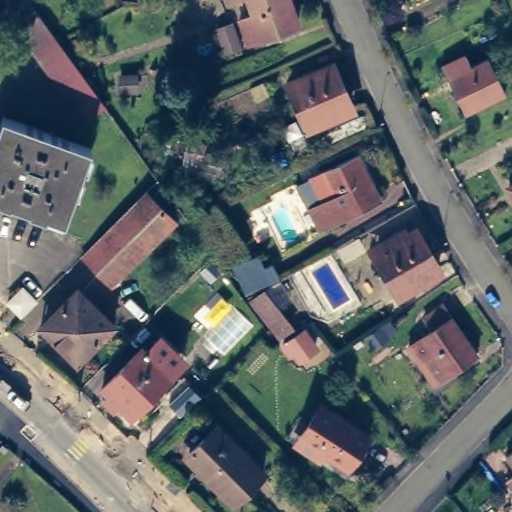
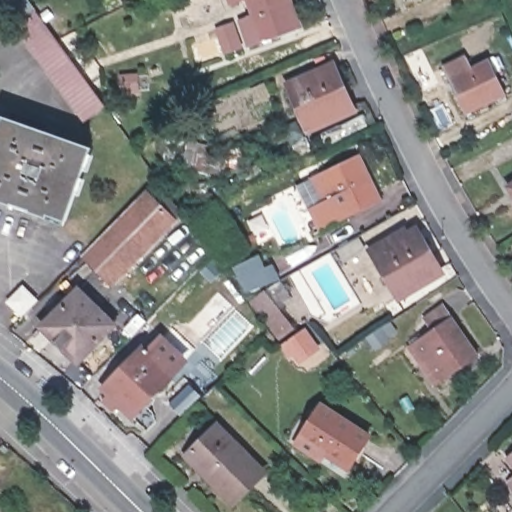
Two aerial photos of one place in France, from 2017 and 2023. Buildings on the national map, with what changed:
unchanged [(0,0),(16,0),(13,6),(0,0)]
unchanged [(309,18),(308,20),(261,36),(251,13),(265,7),(263,0),(304,0),(307,9),(309,18)]
unchanged [(78,109),(13,16),(33,1),(53,30),(99,94),(78,109)]
unchanged [(244,16),(252,39),(246,43),(239,44),(230,22),(236,19),(244,16)]
unchanged [(438,62),(458,53),(463,64),(485,55),(502,90),(462,110),(438,62)]
unchanged [(328,68),(346,110),(304,128),(296,104),(296,109),(288,86),(294,82),(294,83),(294,84),(328,68)]
unchanged [(512,93),(512,99),(509,94),(512,93)]
unchanged [(88,141),(65,217),(0,195),(0,112),(88,141)]
unchanged [(318,231),(306,201),(319,197),(307,175),(318,170),(359,148),(379,200),(324,228),(318,231)]
unchanged [(512,181),(512,185),(510,182),(512,181)]
unchanged [(142,191),(149,184),(172,204),(179,215),(173,220),(110,284),(80,255),(119,213),(142,191)]
unchanged [(417,220),(448,268),(399,299),(369,246),(417,220)]
unchanged [(26,309),(14,297),(28,283),(40,294),(26,309)]
unchanged [(76,290),(83,297),(89,294),(96,301),(93,307),(111,328),(76,362),(40,327),(76,290)]
unchanged [(444,301),(479,350),(436,380),(426,367),(437,359),(421,336),(434,326),(425,314),(444,301)]
unchanged [(173,376),(136,415),(108,388),(144,349),(173,376)]
unchanged [(323,405),(371,437),(351,470),(327,455),(301,436),(313,420),(323,405)]
unchanged [(272,468),(235,501),(183,450),(219,416),(272,468)]
unchanged [(512,449),(512,459),(507,453),(512,449)]
unchanged [(512,473),(512,481),(508,476),(512,473)]

